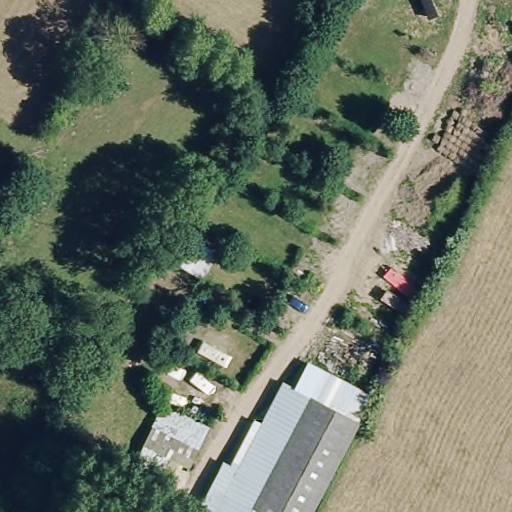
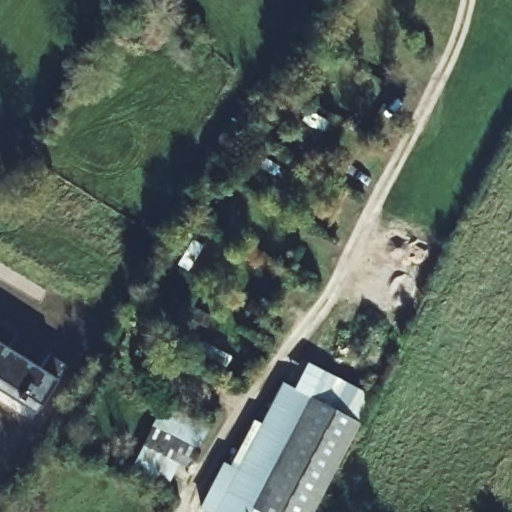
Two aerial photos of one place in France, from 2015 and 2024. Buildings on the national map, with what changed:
new [(6,346),(41,368),(49,354),(66,365),(57,378),(41,405),(37,413),(0,390),(0,324),(14,333),(6,346)]
unchanged [(212,512),(200,505),(225,461),(232,464),(253,420),(262,424),(284,381),(316,396),(330,372),(373,393),(313,512),(212,512)]
unchanged [(182,487),(130,464),(162,403),(210,428),(182,487)]

